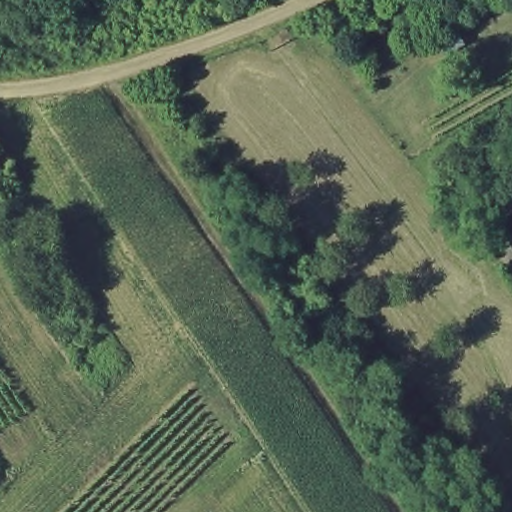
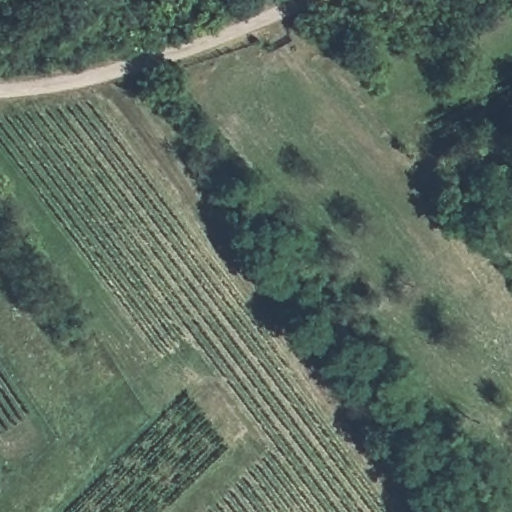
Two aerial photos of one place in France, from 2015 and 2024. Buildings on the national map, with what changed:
unchanged [(502,228),(512,221),(512,245),(502,228)]

